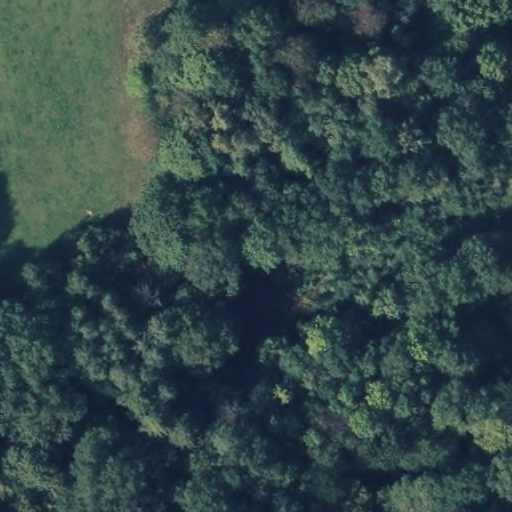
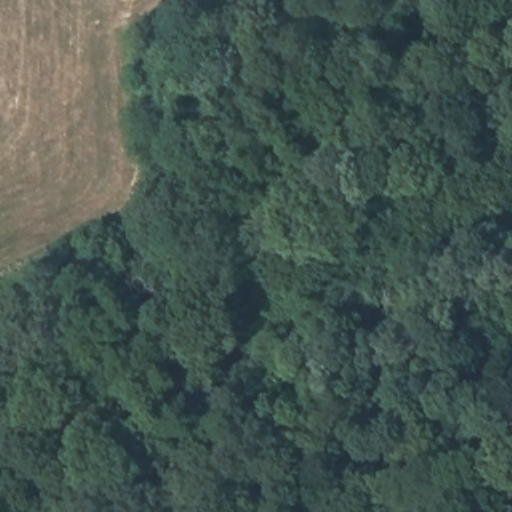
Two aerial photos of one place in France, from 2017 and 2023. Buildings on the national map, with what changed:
[]

